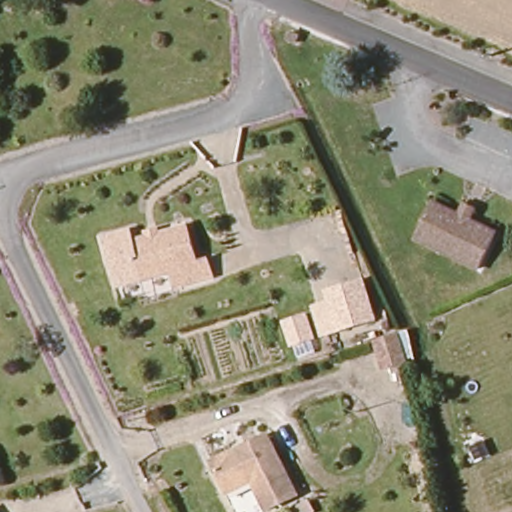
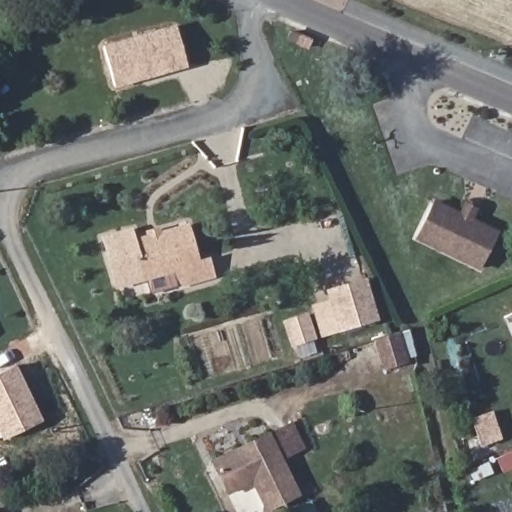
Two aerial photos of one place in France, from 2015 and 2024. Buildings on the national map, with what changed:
new [(114,87),(103,45),(177,25),(188,67),(114,87)]
unchanged [(484,270),(421,239),(440,203),(466,215),(471,205),(481,210),(476,220),(502,233),(484,270)]
unchanged [(191,218),(200,254),(211,251),(215,269),(179,277),(176,262),(148,270),(138,233),(191,218)]
unchanged [(148,270),(151,283),(116,291),(99,234),(135,225),(138,233),(148,270)]
unchanged [(363,282),(375,321),(341,330),(329,292),(363,282)]
unchanged [(306,317),(311,341),(299,344),(292,321),(306,317)]
unchanged [(406,364),(381,371),(372,341),(396,334),(406,364)]
new [(0,435),(0,372),(16,364),(43,420),(3,440),(0,435)]
unchanged [(264,429),(297,492),(265,507),(249,477),(225,489),(208,456),(264,429)]

